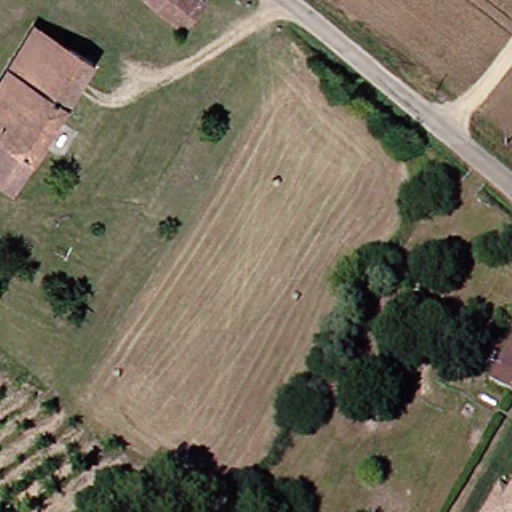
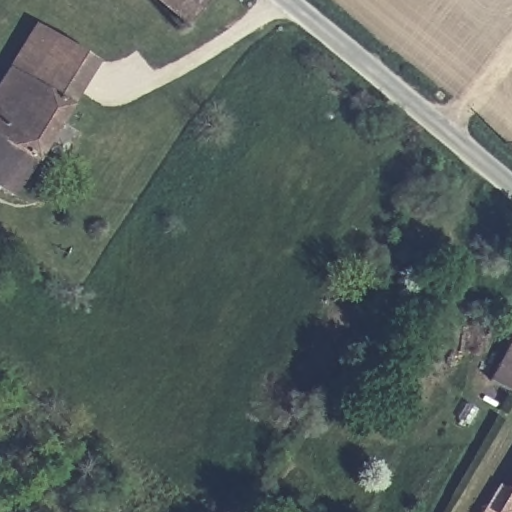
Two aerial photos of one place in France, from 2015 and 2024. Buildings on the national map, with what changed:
unchanged [(149,0),(188,0),(170,19),(149,0)]
unchanged [(85,58),(25,155),(11,146),(0,166),(0,68),(29,21),(85,58)]
unchanged [(25,155),(2,192),(0,191),(0,166),(11,146),(25,155)]
unchanged [(482,378),(512,321),(512,394),(482,378)]
unchanged [(500,478),(512,485),(512,512),(482,512),(500,478)]

